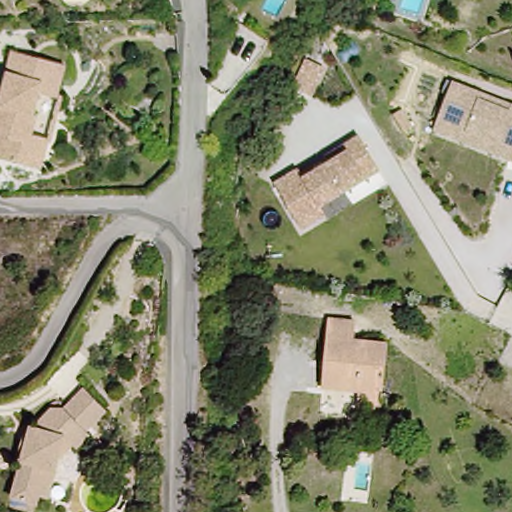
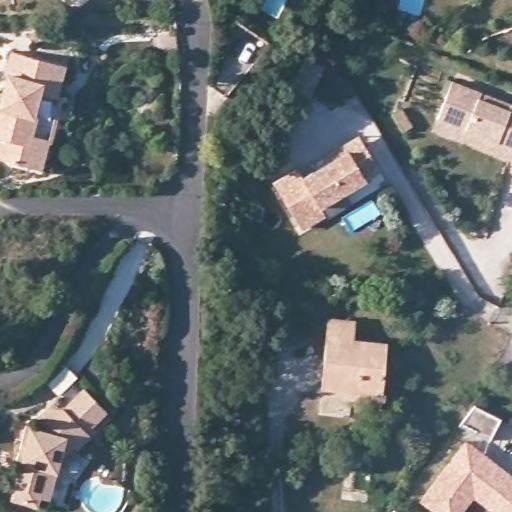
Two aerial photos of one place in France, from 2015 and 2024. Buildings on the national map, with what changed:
unchanged [(4,144),(0,143),(0,107),(8,81),(6,79),(16,54),(70,72),(60,104),(44,99),(38,118),(42,119),(37,138),(53,143),(43,175),(0,160),(4,144)]
new [(310,74),(328,82),(314,110),(296,101),(310,74)]
unchanged [(436,129),(454,81),(512,103),(512,160),(436,129)]
unchanged [(298,166),(302,173),(344,149),(341,144),(359,134),(379,172),(319,203),(324,213),(301,225),(275,179),(298,166)]
unchanged [(359,414),(359,399),(321,397),(323,329),(352,330),(353,342),(385,343),(383,379),(390,380),(388,398),(381,397),(380,415),(359,414)]
unchanged [(38,496),(34,504),(12,499),(23,461),(18,459),(26,428),(39,428),(42,418),(54,408),(63,408),(83,390),(103,412),(61,455),(54,479),(48,499),(38,496)]
new [(473,404),(500,419),(490,439),(460,424),(473,404)]
new [(482,451),(512,474),(512,512),(490,512),(473,499),(463,512),(433,512),(418,500),(465,439),(482,451)]

